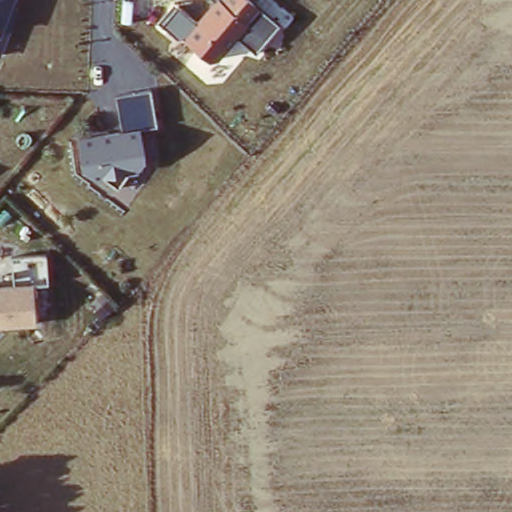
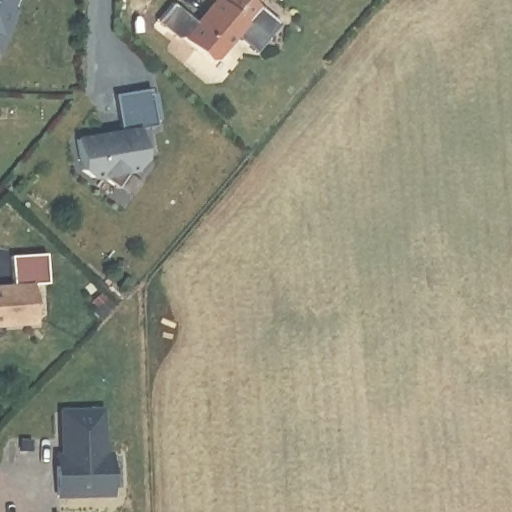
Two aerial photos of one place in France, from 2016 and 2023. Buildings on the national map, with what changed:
unchanged [(15,7),(0,51),(0,0),(14,0),(12,6),(15,7)]
unchanged [(219,62),(187,32),(218,0),(251,0),(265,12),(219,62)]
unchanged [(153,87),(158,127),(143,129),(149,165),(90,177),(83,136),(124,127),(121,91),(153,87)]
unchanged [(31,282),(34,325),(0,326),(0,284),(31,282)]
new [(62,407),(102,406),(103,451),(110,450),(111,490),(57,491),(57,462),(56,452),(64,452),(62,407)]

